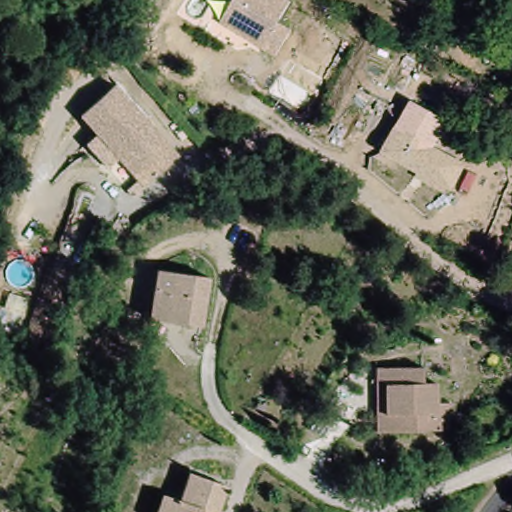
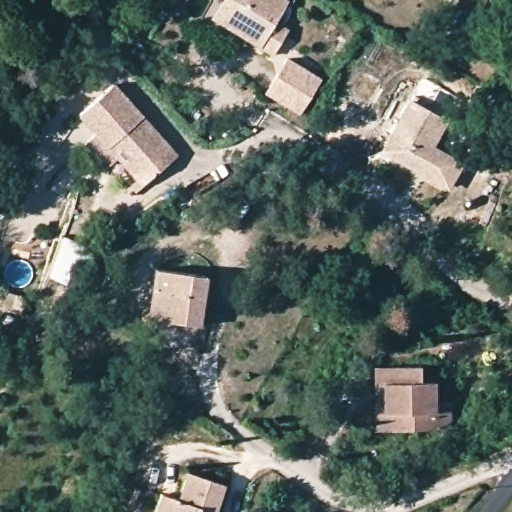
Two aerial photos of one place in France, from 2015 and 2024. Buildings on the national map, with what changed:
unchanged [(232,0),(291,0),(292,1),(279,20),(292,30),(276,57),(220,21),(232,0)]
new [(287,59),(323,80),(301,117),(264,96),(287,59)]
unchanged [(116,81),(181,156),(145,182),(81,113),(116,81)]
unchanged [(384,150),(412,100),(449,121),(434,147),(466,165),(451,192),(384,150)]
unchanged [(205,273),(196,327),(150,320),(158,267),(205,273)]
unchanged [(423,382),(435,382),(436,403),(451,405),(451,433),(376,431),(377,412),(379,382),(380,366),(389,366),(422,367),(423,382)]
unchanged [(177,501),(189,469),(225,483),(214,512),(154,512),(162,494),(177,501)]

